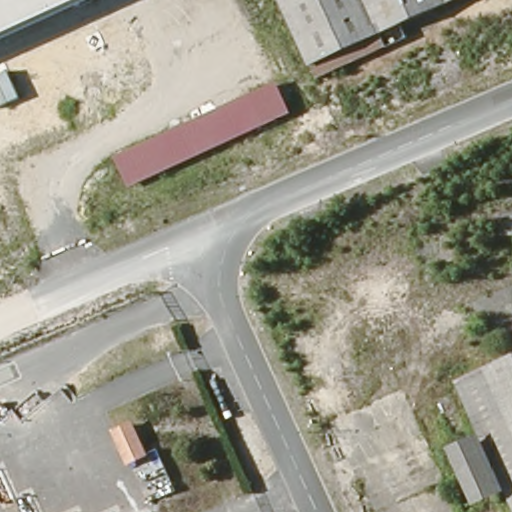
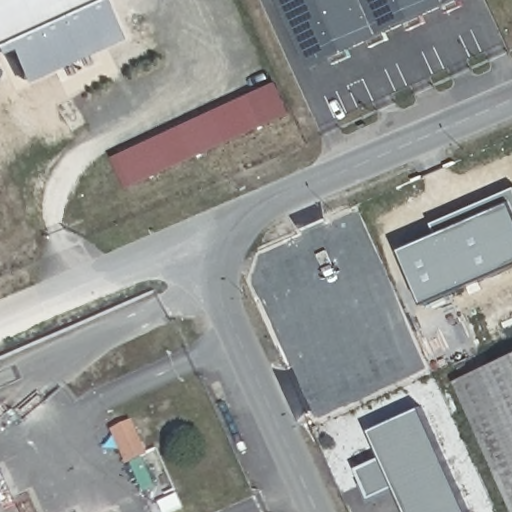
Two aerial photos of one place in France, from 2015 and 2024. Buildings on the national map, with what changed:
unchanged [(0,39),(0,0),(85,0),(0,39)]
new [(24,83),(9,49),(0,53),(0,39),(85,0),(103,0),(121,39),(24,83)]
unchanged [(307,65),(278,0),(452,0),(307,65)]
unchanged [(130,187),(115,157),(278,82),(291,114),(130,187)]
new [(403,250),(439,235),(434,224),(512,190),(512,268),(426,306),(403,250)]
unchanged [(512,356),(512,512),(507,512),(448,385),(512,356)]
new [(358,468),(382,457),(370,431),(421,408),(468,512),(407,512),(395,485),(370,496),(358,468)]
unchanged [(136,430),(149,459),(132,468),(118,437),(136,430)]

